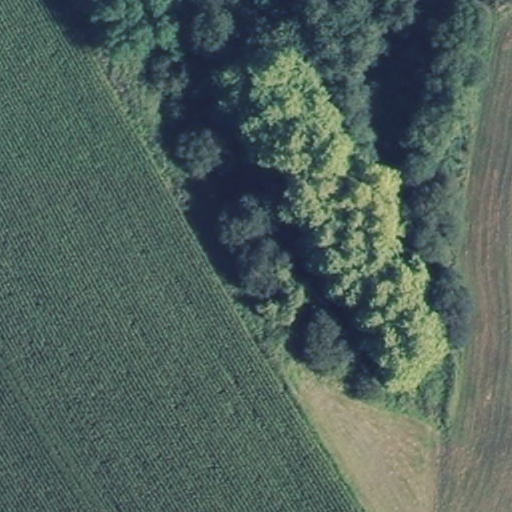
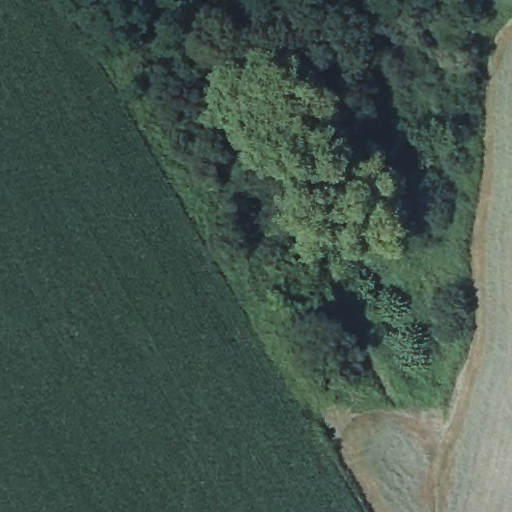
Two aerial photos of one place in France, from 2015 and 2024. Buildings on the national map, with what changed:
unchanged [(431,122),(389,125),(384,44),(424,38),(431,122)]

